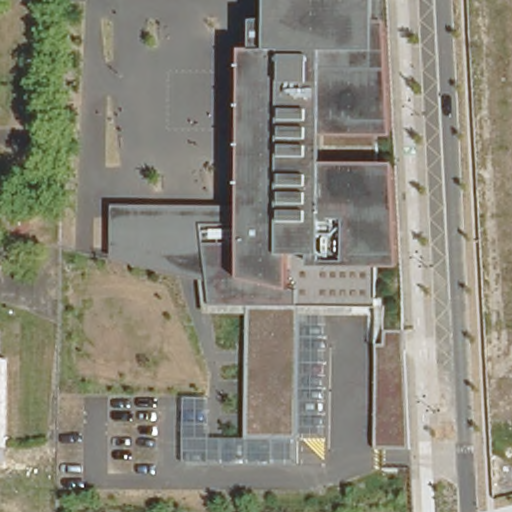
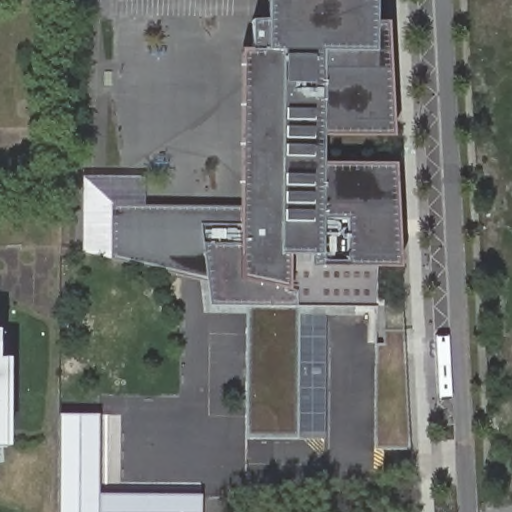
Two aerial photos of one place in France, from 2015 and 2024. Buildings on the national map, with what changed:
unchanged [(242,50),(254,50),(254,22),(269,23),(269,0),(378,0),(378,23),(392,23),(397,136),(379,136),(379,164),(398,164),(402,269),(376,268),(377,306),(357,306),(356,317),(300,316),(297,436),(248,436),(250,314),(204,314),(199,282),(112,260),(111,205),(243,208),(242,50)]
unchanged [(1,359),(9,359),(9,447),(0,447),(0,330),(1,330),(1,359)]
unchanged [(410,449),(377,448),(376,346),(387,346),(387,331),(404,332),(410,449)]
new [(59,416),(99,416),(99,494),(201,495),(201,512),(59,512),(59,416)]
demolished [(39,492),(39,512),(3,512),(3,493),(0,493),(0,472),(51,473),(51,493),(39,492)]

